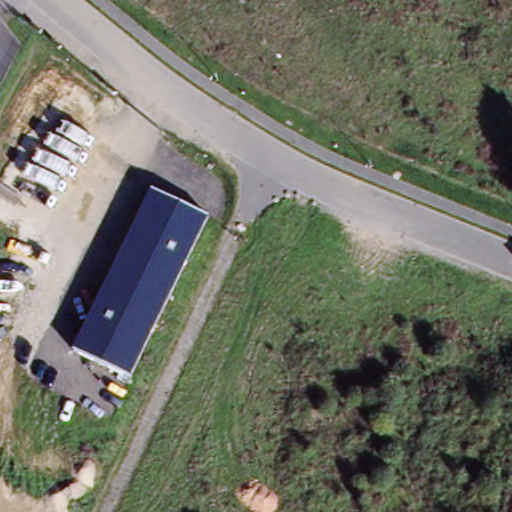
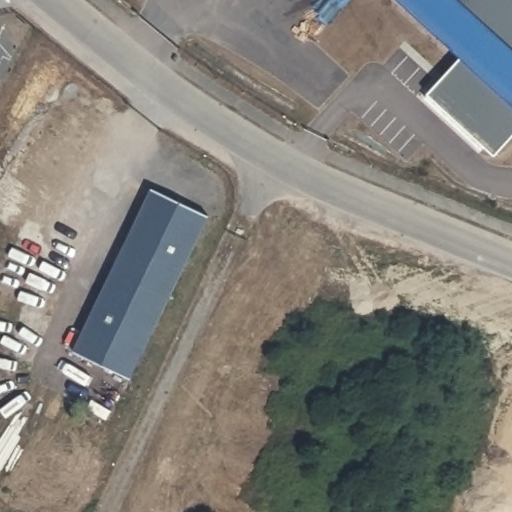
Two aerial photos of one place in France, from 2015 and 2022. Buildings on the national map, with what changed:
new [(426,92),(462,57),(399,0),(512,0),(512,138),(496,156),(426,92)]
unchanged [(209,218),(136,377),(75,347),(151,189),(209,218)]

